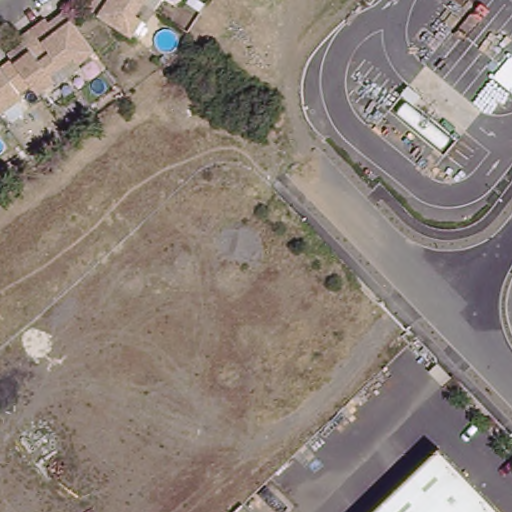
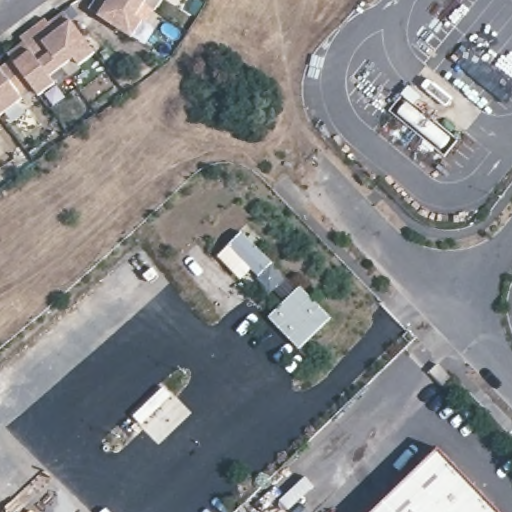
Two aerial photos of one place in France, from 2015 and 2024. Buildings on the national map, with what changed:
unchanged [(93,0),(143,0),(143,1),(123,29),(91,4),(93,0)]
unchanged [(51,33),(78,13),(102,44),(74,64),(59,43),(51,33)]
unchanged [(5,56),(15,70),(30,59),(25,52),(39,42),(47,52),(59,43),(74,64),(48,84),(40,74),(26,84),(28,89),(0,110),(0,59),(5,56)]
demolished [(411,98),(423,108),(417,115),(405,105),(411,98)]
new [(252,269),(241,280),(216,256),(242,230),(274,262),(259,276),(252,269)]
new [(269,316),(301,287),(331,318),(300,348),(269,316)]
unchanged [(378,512),(441,452),(498,512),(378,512)]

